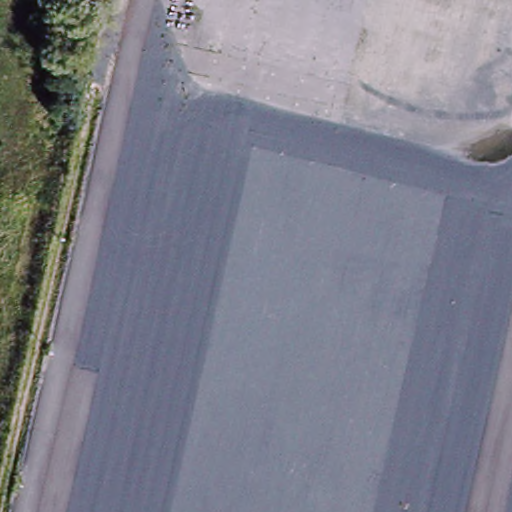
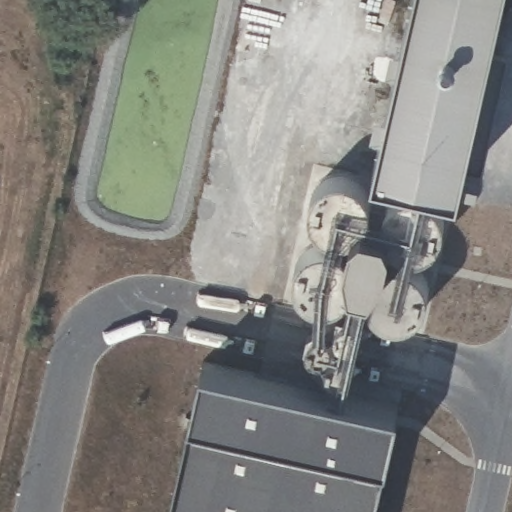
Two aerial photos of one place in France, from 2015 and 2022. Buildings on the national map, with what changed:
new [(361,152),(395,0),(501,0),(462,177),(361,152)]
demolished [(471,0),(512,0),(512,25),(468,14),(471,0)]
new [(371,178),(378,184),(383,191),(385,200),(384,209),(381,217),(375,225),(368,230),(359,232),(350,231),(341,227),(334,222),(330,215),(327,206),(328,197),(331,188),(337,181),(344,177),(353,174),(362,175),(371,178)]
new [(439,194),(446,199),(450,207),(453,216),(452,225),(449,233),(443,240),(435,245),(427,247),(418,247),(409,243),(402,237),(397,230),(395,221),(396,212),(399,204),(405,197),(412,192),(421,190),(430,190),(439,194)]
new [(356,246),(363,251),(368,259),(370,267),(369,277),(366,285),(360,292),(353,297),(344,299),(335,298),(326,295),(319,290),(314,282),(312,273),(313,264),(316,256),(322,249),(329,244),(338,242),(347,242),(356,246)]
new [(423,262),(430,268),(435,276),(438,285),(437,293),(434,302),(428,309),(420,314),(412,316),(403,316),(394,312),(387,307),(382,299),(380,290),(381,281),(384,272),(390,266),(397,261),(406,258),(415,259),(423,262)]
new [(398,404),(386,455),(385,472),(375,512),(170,512),(190,426),(192,410),(203,359),(398,404)]

